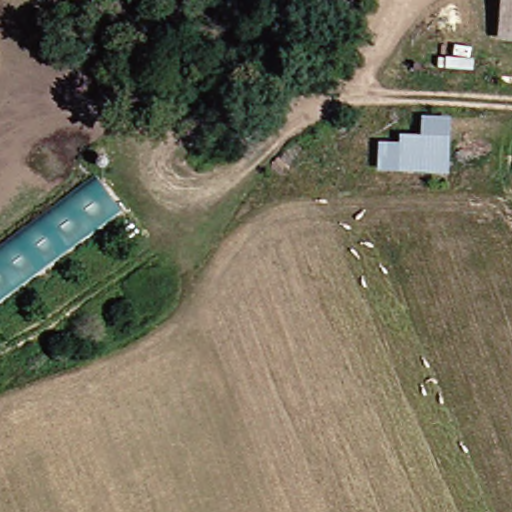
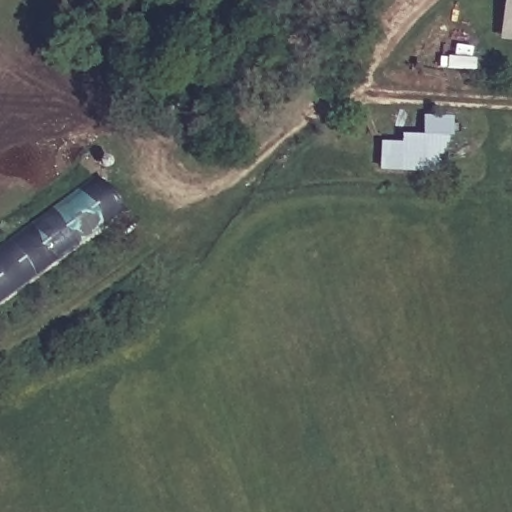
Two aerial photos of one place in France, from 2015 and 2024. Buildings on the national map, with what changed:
unchanged [(500,39),(502,0),(512,0),(512,40),(500,39)]
unchanged [(456,173),(404,173),(384,172),(384,142),(405,143),(405,136),(425,134),(425,116),(457,118),(456,173)]
unchanged [(127,212),(0,307),(0,255),(102,179),(127,212)]

